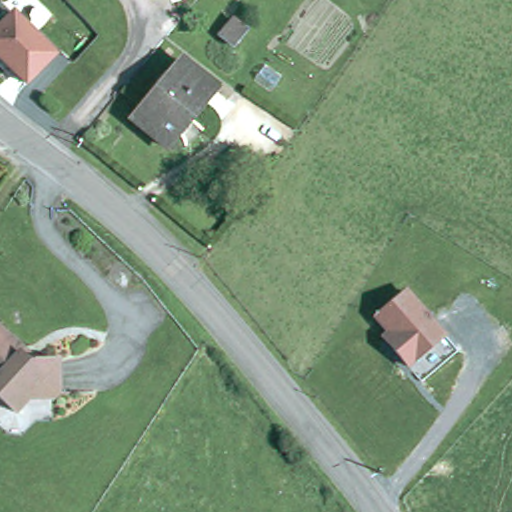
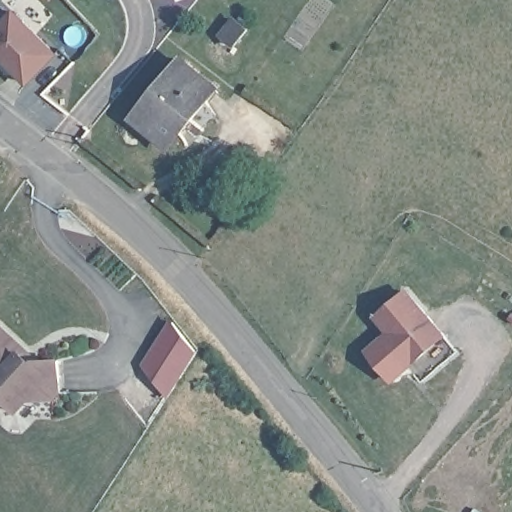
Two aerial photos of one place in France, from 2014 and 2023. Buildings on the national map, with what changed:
unchanged [(0,68),(0,26),(13,13),(55,53),(26,83),(15,72),(10,77),(0,68)]
unchanged [(234,46),(221,36),(235,20),(247,30),(234,46)]
unchanged [(217,89),(169,148),(133,118),(182,60),(217,89)]
unchanged [(375,318),(406,292),(456,352),(421,382),(408,367),(393,349),(383,338),(389,333),(375,318)]
new [(192,346),(165,387),(145,362),(171,320),(192,346)]
unchanged [(22,352),(35,365),(62,363),(65,388),(53,400),(32,397),(16,411),(0,395),(0,323),(1,322),(25,346),(22,352)]

